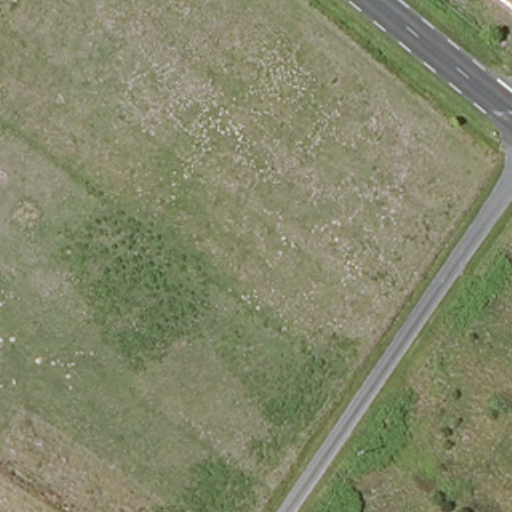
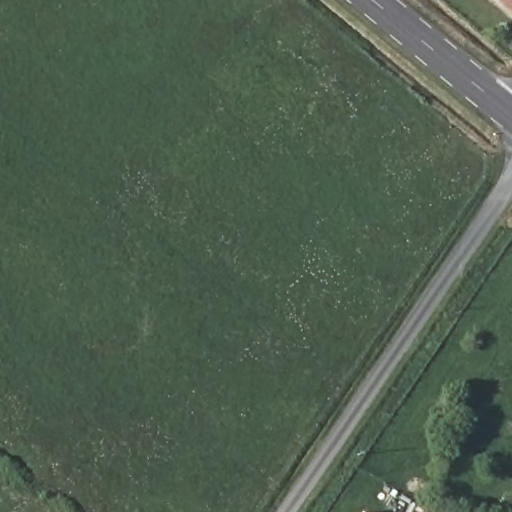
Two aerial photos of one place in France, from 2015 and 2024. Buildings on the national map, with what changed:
unchanged [(512,0),(512,13),(496,0),(512,0)]

